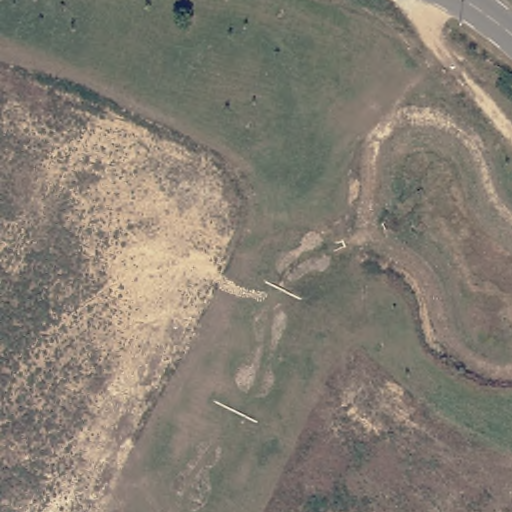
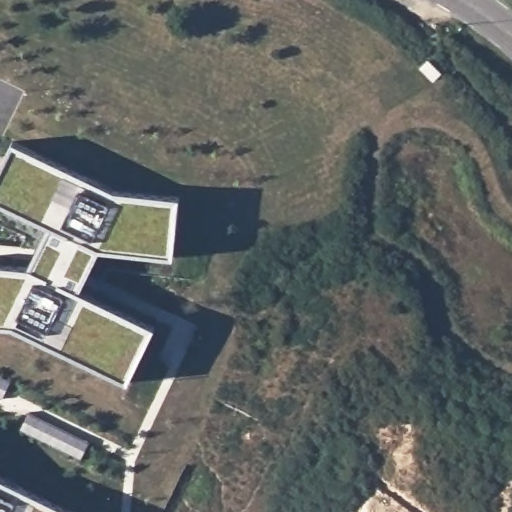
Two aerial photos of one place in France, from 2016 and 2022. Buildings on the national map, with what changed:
new [(47,225),(0,203),(0,162),(11,139),(114,188),(179,194),(172,256),(97,250),(77,292),(154,326),(126,383),(10,327),(0,327),(0,263),(26,266),(47,225)]
new [(0,479),(72,512),(0,512),(0,479)]

